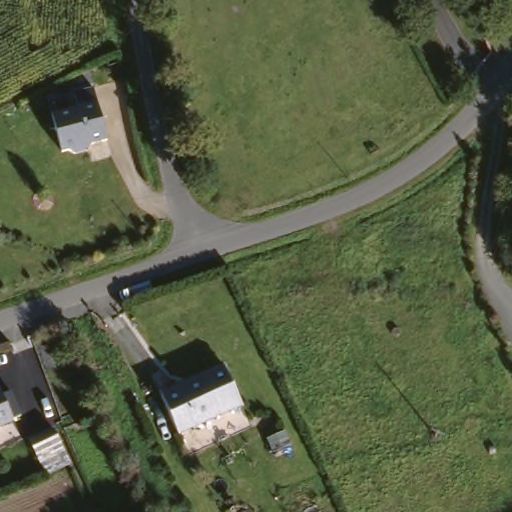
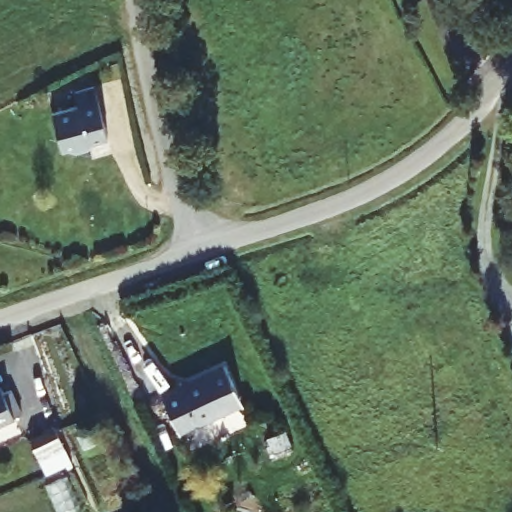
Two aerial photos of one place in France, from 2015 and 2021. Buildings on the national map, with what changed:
unchanged [(95,142),(92,149),(78,152),(72,149),(66,151),(55,113),(81,106),(77,91),(97,86),(111,138),(95,142)]
unchanged [(225,366),(242,402),(178,431),(161,395),(225,366)]
unchanged [(3,394),(11,391),(21,415),(14,419),(14,420),(0,427),(0,388),(3,394)]
unchanged [(44,471),(35,451),(59,439),(69,459),(44,471)]

